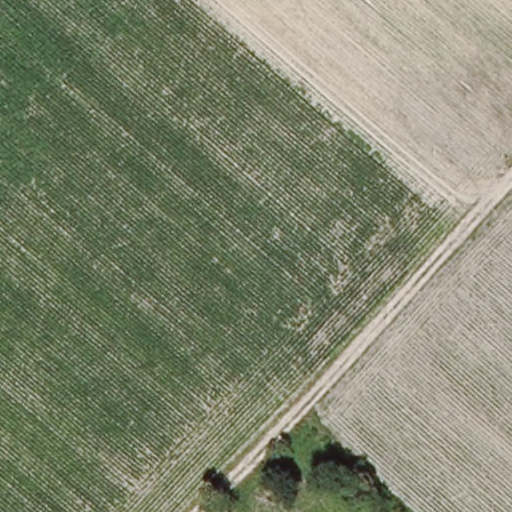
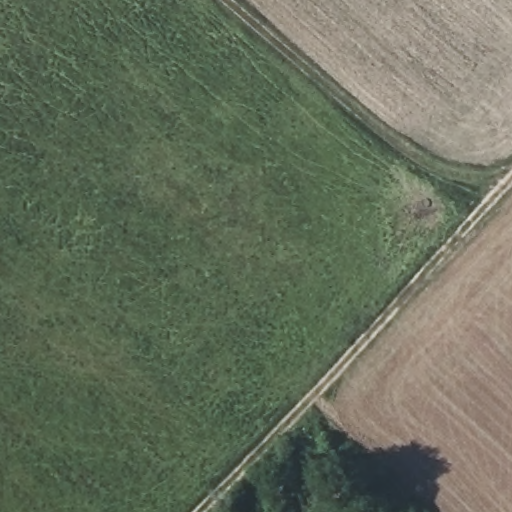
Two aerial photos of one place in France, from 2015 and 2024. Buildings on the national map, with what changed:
[]

